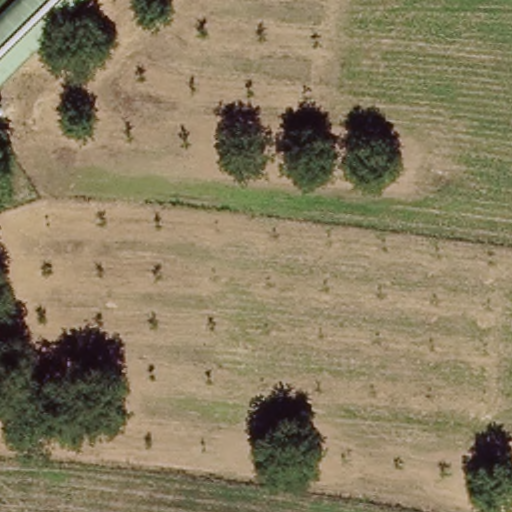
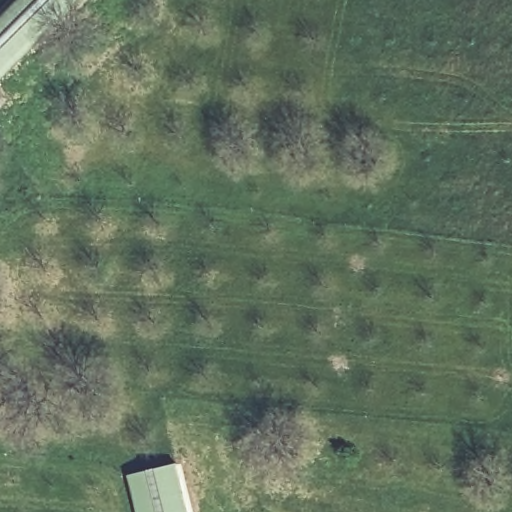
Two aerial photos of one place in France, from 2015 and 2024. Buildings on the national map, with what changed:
unchanged [(0,82),(0,19),(19,0),(82,0),(0,82)]
new [(190,512),(142,512),(133,478),(177,466),(190,512)]

